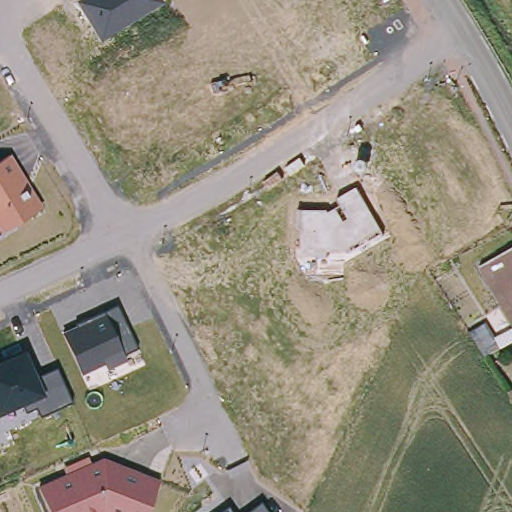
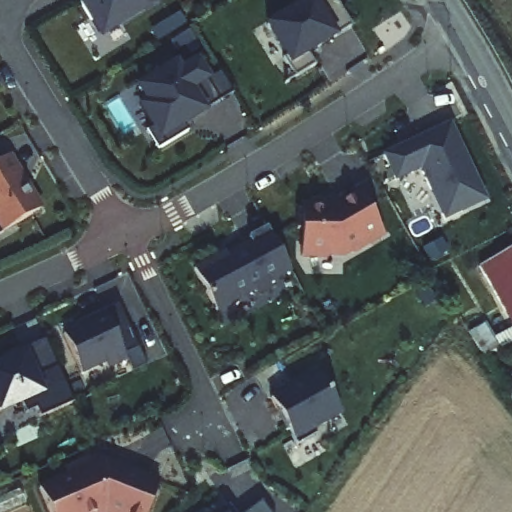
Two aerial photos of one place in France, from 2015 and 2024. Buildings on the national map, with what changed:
unchanged [(163,2),(100,41),(75,0),(162,0),(163,2)]
new [(319,0),(333,0),(354,33),(314,60),(318,64),(297,78),(269,33),(319,0)]
new [(158,76),(153,68),(169,59),(179,74),(195,64),(205,81),(219,73),(232,94),(194,118),(190,112),(179,119),(187,132),(157,151),(145,132),(152,128),(140,108),(147,104),(137,89),(158,76)]
new [(421,173),(395,185),(382,157),(450,124),(487,204),(444,223),(421,173)]
unchanged [(44,208),(0,234),(0,162),(12,155),(44,208)]
unchanged [(327,210),(327,212),(340,204),(337,198),(357,187),(382,234),(350,252),(327,252),(327,256),(302,257),(301,230),(297,230),(297,209),(327,210)]
new [(215,258),(217,261),(249,243),(246,238),(266,227),(290,272),(267,284),(270,288),(259,294),(252,292),(215,312),(204,292),(192,270),(215,258)]
unchanged [(479,268),(512,249),(512,343),(485,358),(483,359),(467,334),(485,325),(494,338),(511,328),(494,296),(479,268)]
unchanged [(117,307),(137,349),(125,355),(128,360),(109,369),(105,364),(82,374),(62,332),(105,313),(117,307)]
unchanged [(42,417),(37,408),(27,413),(23,405),(0,415),(0,362),(26,351),(37,376),(57,368),(72,404),(42,417)]
new [(317,372),(339,412),(310,428),(314,435),(296,445),(269,399),(317,372)]
unchanged [(507,394),(512,391),(512,401),(507,394)]
unchanged [(90,457),(93,462),(105,458),(162,480),(149,512),(49,512),(38,487),(66,474),(63,468),(90,457)]
unchanged [(269,512),(248,512),(262,503),(269,512)]
unchanged [(231,512),(222,512),(228,508),(231,512)]

